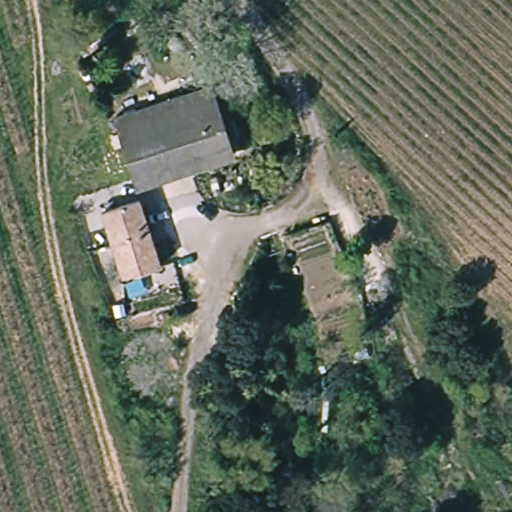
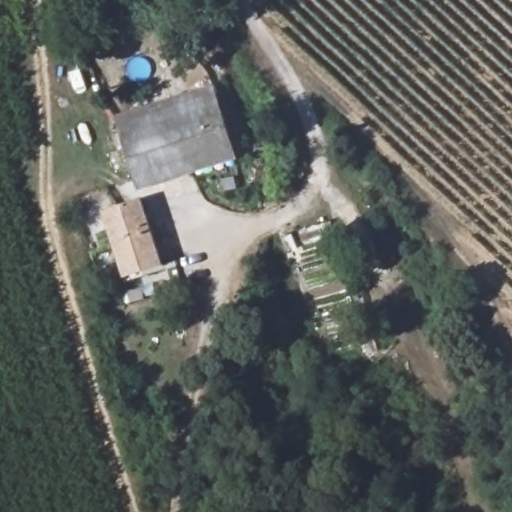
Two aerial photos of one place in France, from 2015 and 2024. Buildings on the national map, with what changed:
unchanged [(204,83),(235,149),(213,160),(184,92),(204,83)]
unchanged [(213,160),(142,193),(112,127),(184,92),(213,160)]
unchanged [(163,260),(128,276),(100,215),(137,197),(163,260)]

